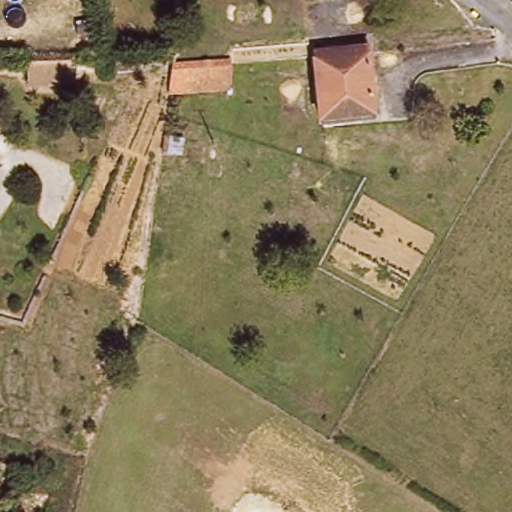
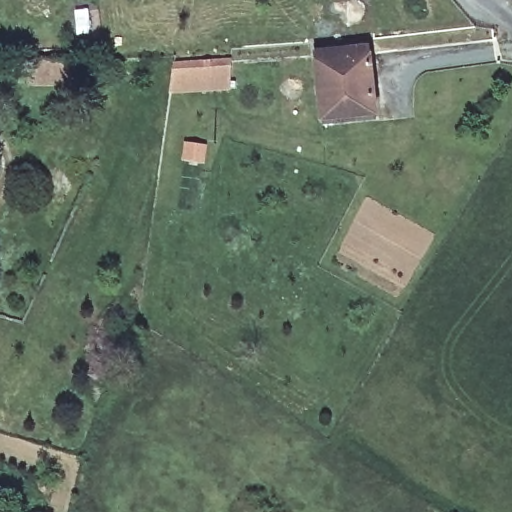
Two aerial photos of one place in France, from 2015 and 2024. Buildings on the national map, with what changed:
unchanged [(374,111),(320,116),(313,47),(367,43),(374,111)]
unchanged [(241,80),(180,87),(184,61),(239,56),(241,80)]
unchanged [(28,59),(71,58),(71,87),(28,88),(28,59)]

